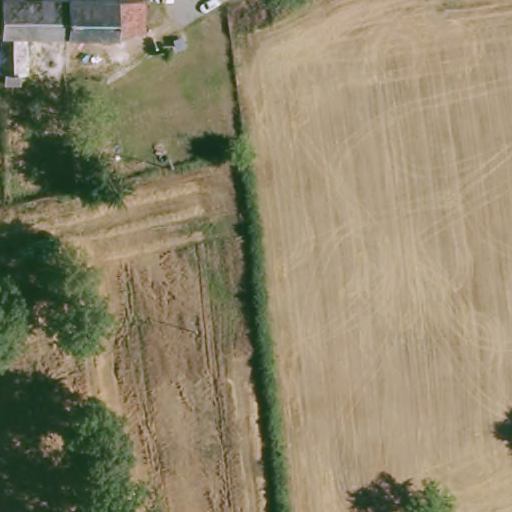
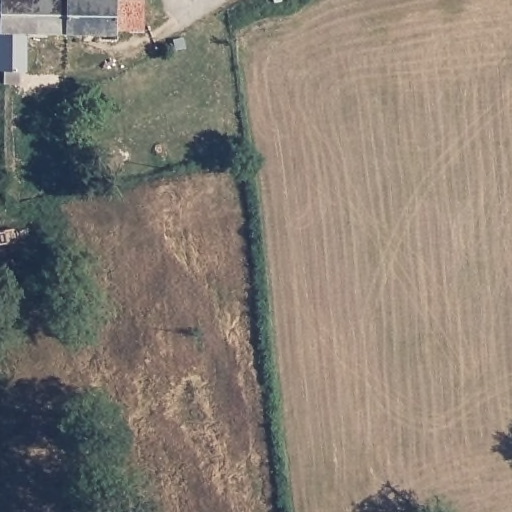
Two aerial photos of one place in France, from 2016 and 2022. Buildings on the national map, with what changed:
unchanged [(14,64),(14,78),(10,78),(0,78),(0,0),(135,0),(135,27),(111,27),(20,28),(18,64),(14,64)]

